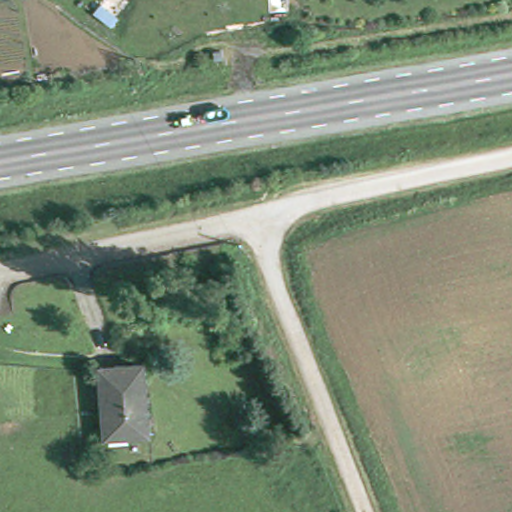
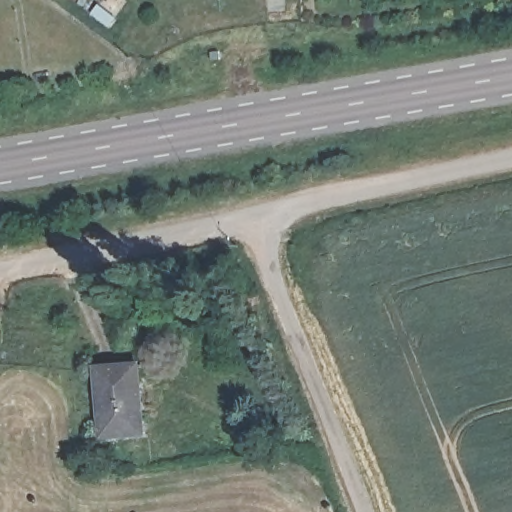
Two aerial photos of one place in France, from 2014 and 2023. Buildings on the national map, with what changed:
unchanged [(148,436),(107,439),(102,370),(142,368),(148,436)]

